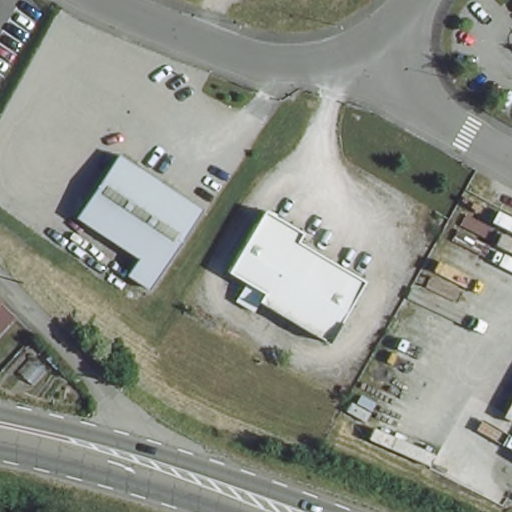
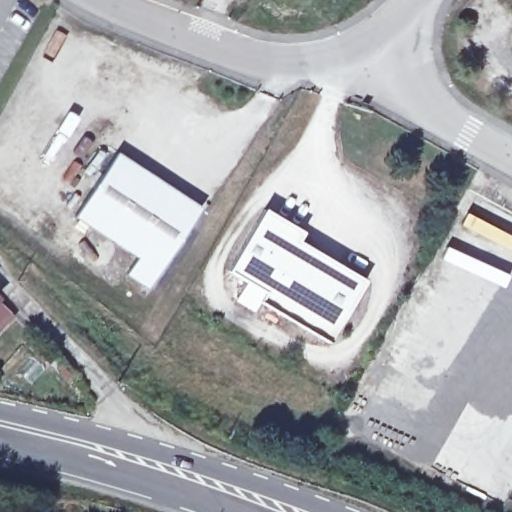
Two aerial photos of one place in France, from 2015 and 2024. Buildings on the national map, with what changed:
unchanged [(76,217),(117,154),(201,209),(148,289),(127,275),(138,258),(76,217)]
unchanged [(306,236),(300,246),(366,281),(332,343),(264,304),(268,296),(232,275),(266,213),(306,236)]
unchanged [(0,299),(14,311),(0,325),(0,299)]

